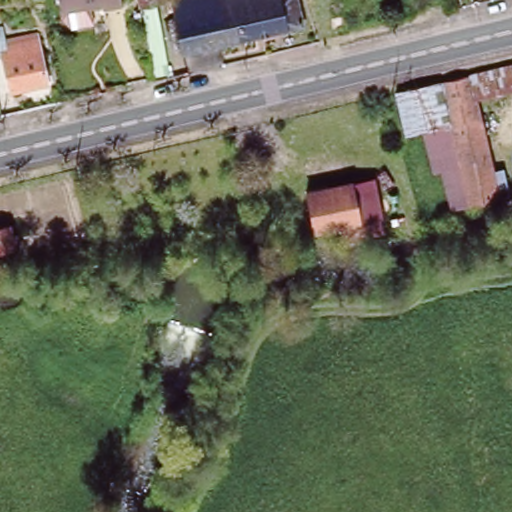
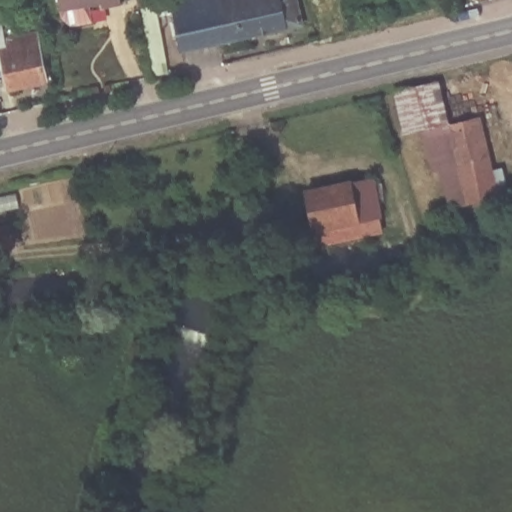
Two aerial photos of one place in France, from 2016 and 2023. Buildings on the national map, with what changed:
unchanged [(105,8),(105,3),(65,11),(63,0),(124,0),(125,4),(105,8)]
unchanged [(167,0),(167,2),(147,7),(146,0),(167,0)]
unchanged [(227,44),(187,54),(175,0),(178,0),(303,0),(309,24),(227,44)]
unchanged [(40,34),(52,82),(15,91),(7,59),(14,58),(10,41),(40,34)]
unchanged [(476,68),(512,59),(512,96),(483,102),(476,68)]
unchanged [(476,68),(483,102),(502,194),(451,207),(435,136),(434,127),(425,83),(424,80),(476,68)]
unchanged [(424,80),(425,83),(434,127),(405,134),(392,91),(424,80)]
unchanged [(375,179),(381,217),(315,229),(309,191),(375,179)]
unchanged [(20,245),(0,251),(0,225),(15,221),(20,245)]

